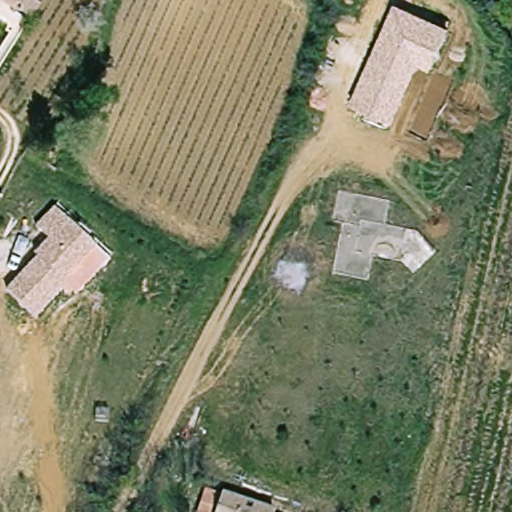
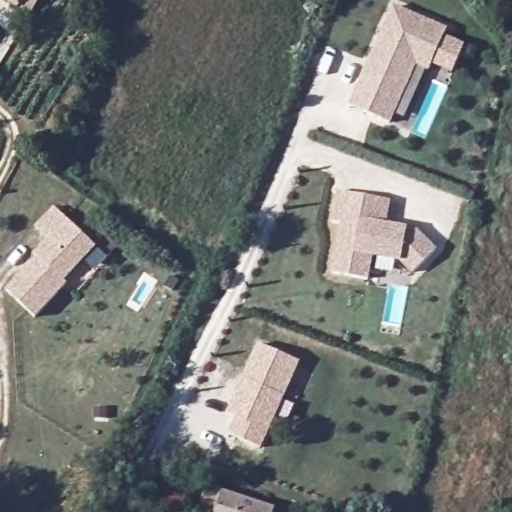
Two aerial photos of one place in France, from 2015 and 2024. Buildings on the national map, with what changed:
unchanged [(41,1),(29,20),(0,2),(0,0),(39,0),(41,1)]
unchanged [(432,71),(417,66),(392,126),(350,106),(394,6),(446,30),(432,71)]
new [(401,261),(374,256),(370,279),(331,272),(341,223),(330,221),(337,190),(391,201),(388,223),(408,228),(419,229),(437,249),(412,274),(401,261)]
unchanged [(94,246),(108,259),(76,291),(68,285),(33,316),(8,289),(35,261),(33,256),(48,241),(35,228),(54,209),(94,246)]
new [(260,344),(303,362),(287,398),(285,402),(288,404),(281,419),(278,418),(263,450),(230,435),(237,418),(229,414),(244,380),(260,344)]
unchanged [(262,512),(194,512),(181,508),(191,485),(265,509),(262,512)]

